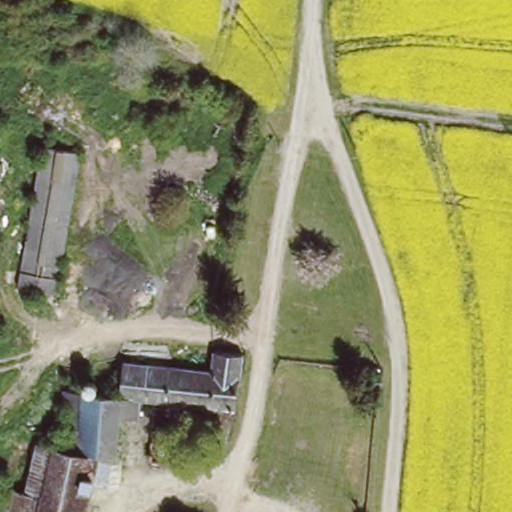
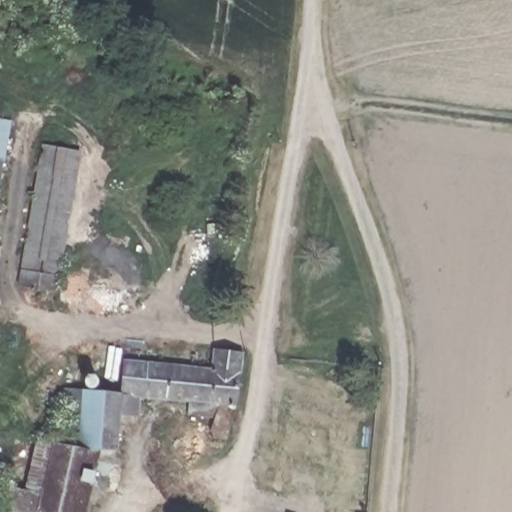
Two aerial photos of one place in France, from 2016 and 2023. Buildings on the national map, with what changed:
new [(5,162),(0,161),(0,119),(12,122),(5,162)]
unchanged [(50,140),(85,146),(64,281),(63,287),(50,285),(40,284),(25,282),(42,182),(50,140)]
unchanged [(0,161),(8,162),(0,209),(0,161)]
unchanged [(70,388),(127,393),(130,362),(219,370),(220,350),(250,353),(240,410),(230,440),(218,438),(217,432),(220,418),(193,415),(195,402),(145,397),(143,416),(126,415),(122,452),(98,449),(84,512),(44,512),(58,444),(65,445),(70,388)]
unchanged [(33,492),(45,442),(58,444),(44,512),(8,512),(13,487),(33,492)]

